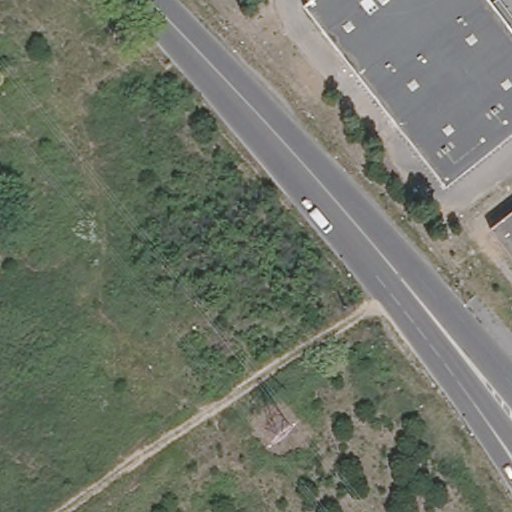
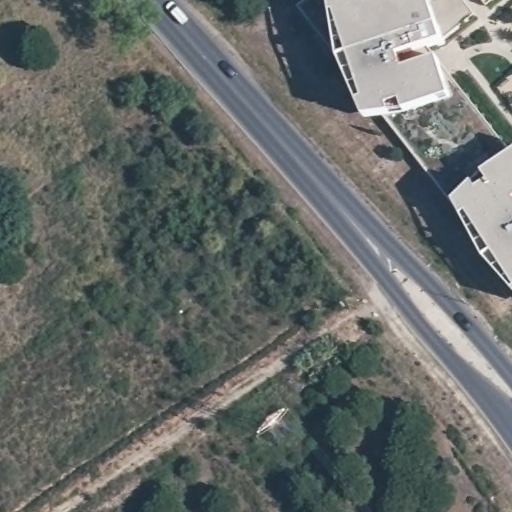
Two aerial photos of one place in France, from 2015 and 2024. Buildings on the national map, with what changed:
new [(462,217),(454,202),(457,200),(391,115),(365,118),(341,60),(298,6),(306,0),(512,0),(512,288),(484,257),(462,217)]
demolished [(493,2),(490,5),(512,33),(512,134),(446,185),(306,5),(313,0),(491,0),(493,2)]
demolished [(512,259),(492,233),(512,217),(512,259)]

